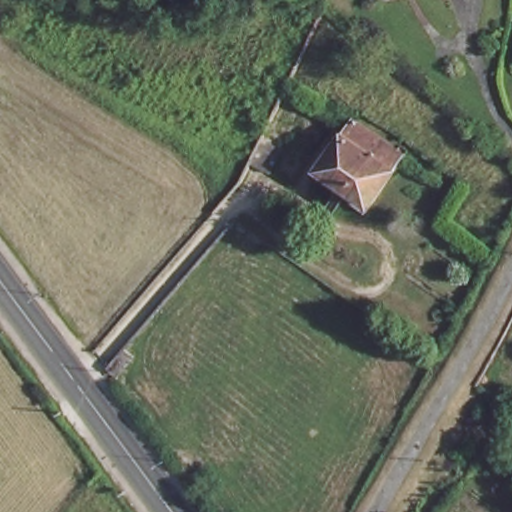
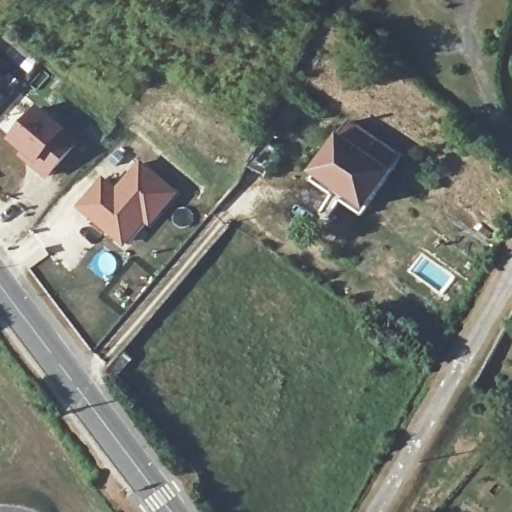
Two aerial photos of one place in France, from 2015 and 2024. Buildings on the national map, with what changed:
new [(0,81),(0,73),(4,76),(0,81)]
new [(25,151),(10,139),(38,104),(69,129),(81,141),(48,180),(20,155),(25,151)]
unchanged [(340,189),(325,209),(317,203),(331,184),(310,168),(350,112),(402,150),(362,206),(340,189)]
unchanged [(276,146),(264,177),(244,168),(253,149),(259,139),(276,146)]
new [(145,219),(124,244),(76,205),(101,175),(116,187),(139,159),(177,190),(151,223),(145,219)]
unchanged [(104,369),(122,348),(133,361),(114,382),(104,369)]

